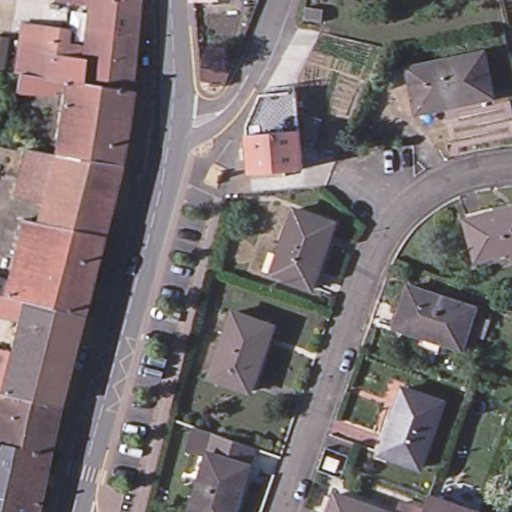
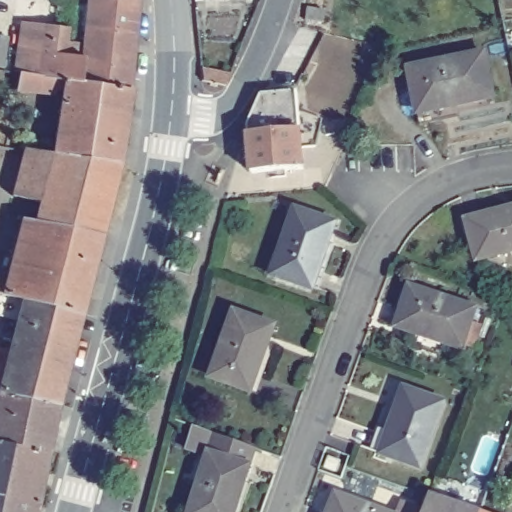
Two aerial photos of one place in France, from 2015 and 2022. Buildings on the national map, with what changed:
unchanged [(127,82),(72,74),(75,50),(82,0),(135,0),(127,82)]
unchanged [(322,12),(320,25),(302,22),(305,9),(322,12)]
unchanged [(61,88),(52,86),(50,91),(12,84),(15,65),(21,17),(67,21),(65,48),(75,50),(72,74),(127,82),(118,139),(52,130),(54,120),(61,88)]
unchanged [(489,63),(495,107),(418,118),(412,75),(489,63)]
unchanged [(201,83),(200,71),(232,78),(228,88),(201,83)]
unchanged [(297,100),(300,137),(251,141),(250,130),(263,102),(297,100)]
unchanged [(48,147),(52,130),(118,139),(115,159),(48,147)]
unchanged [(300,137),(302,177),(255,181),(251,141),(300,137)]
unchanged [(32,214),(37,194),(11,188),(21,144),(48,147),(115,159),(97,229),(32,214)]
unchanged [(228,174),(221,190),(209,184),(217,167),(228,174)]
unchanged [(12,239),(18,211),(32,214),(97,229),(90,256),(12,239)]
unchanged [(336,223),(316,290),(276,277),(296,211),(336,223)]
unchanged [(512,260),(482,269),(470,230),(512,216),(512,260)]
unchanged [(3,276),(12,239),(90,256),(77,306),(22,292),(0,287),(0,275),(3,276)]
unchanged [(15,312),(22,292),(77,306),(72,326),(15,312)]
unchanged [(480,317),(465,357),(401,335),(415,295),(480,317)]
unchanged [(15,312),(72,326),(53,397),(0,387),(0,364),(15,312)]
unchanged [(242,318),(282,333),(265,376),(225,362),(242,318)]
unchanged [(256,399),(217,383),(225,362),(265,376),(256,399)]
unchanged [(53,397),(44,445),(0,437),(0,387),(53,397)]
unchanged [(448,412),(425,477),(385,462),(407,397),(448,412)]
unchanged [(44,445),(32,499),(30,512),(0,512),(0,437),(44,445)]
unchanged [(253,463),(239,512),(195,512),(207,470),(213,448),(253,463)]
unchanged [(512,489),(512,502),(507,501),(512,489)]
unchanged [(331,512),(335,501),(366,512),(331,512)]
unchanged [(426,502),(457,512),(422,512),(425,506),(426,502)]

